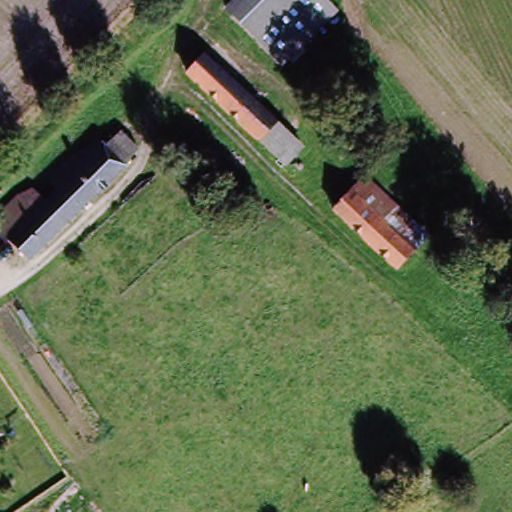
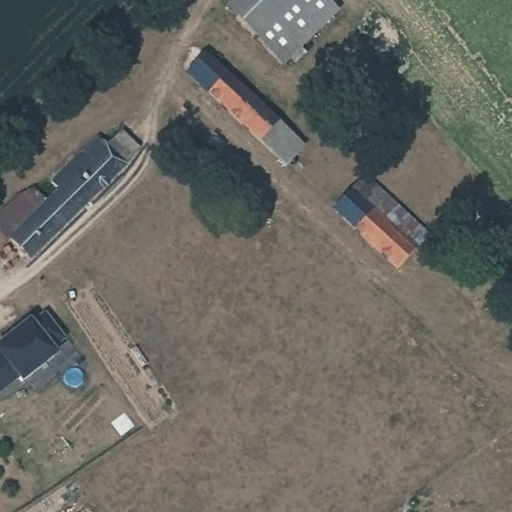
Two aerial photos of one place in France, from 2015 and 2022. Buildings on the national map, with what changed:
unchanged [(281,74),(216,8),(224,0),(327,0),(336,7),(297,55),(281,74)]
unchanged [(188,74),(202,59),(281,130),(301,149),(287,164),(265,143),(188,74)]
unchanged [(30,219),(55,195),(45,185),(95,137),(104,147),(121,131),(137,149),(121,164),(29,258),(10,239),(30,219)]
unchanged [(363,173),(427,234),(413,250),(347,189),(363,173)]
unchanged [(396,266),(330,206),(347,189),(413,250),(396,266)]
unchanged [(2,247),(0,245),(0,210),(11,200),(30,219),(10,239),(2,247)]
new [(0,352),(0,345),(31,322),(33,325),(46,315),(65,338),(51,348),(56,355),(23,381),(19,377),(0,391),(0,353),(1,353),(0,352)]

